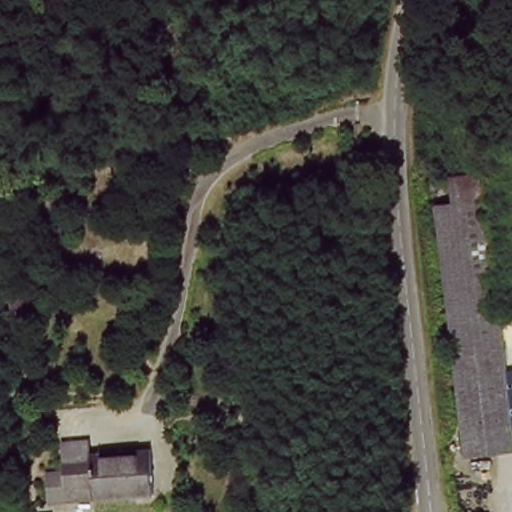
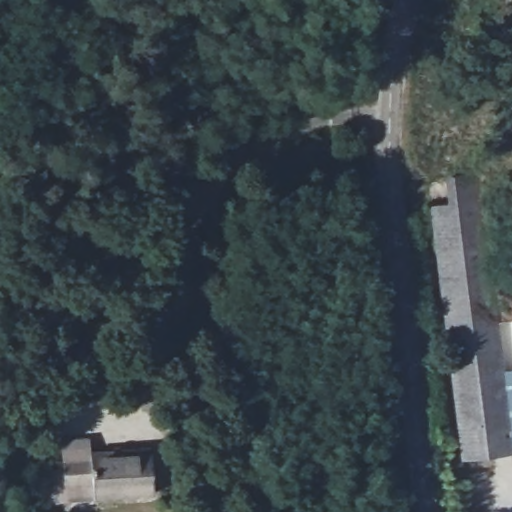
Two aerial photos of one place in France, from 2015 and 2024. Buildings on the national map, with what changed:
unchanged [(512,453),(508,453),(462,459),(432,212),(454,209),(450,177),(480,172),(484,205),(498,323),(512,321),(512,453)]
unchanged [(68,497),(63,497),(62,472),(62,451),(87,450),(87,461),(142,457),(144,503),(86,508),(87,504),(68,506),(68,497)]

